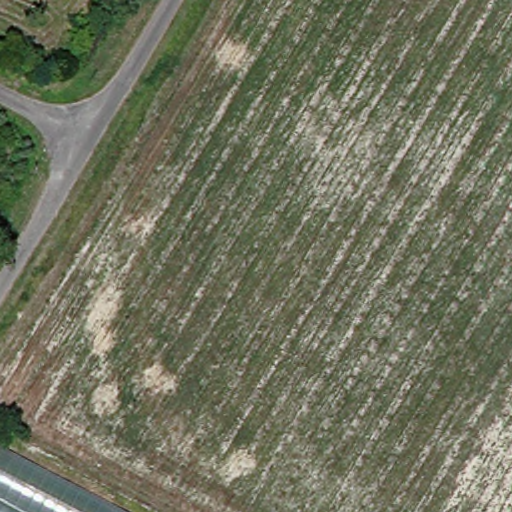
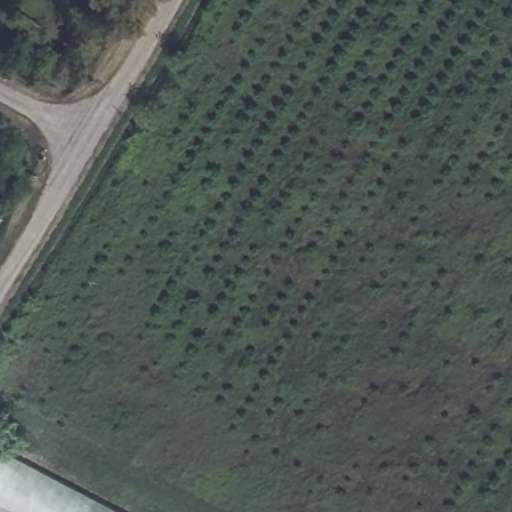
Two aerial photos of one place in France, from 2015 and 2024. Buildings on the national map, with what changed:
unchanged [(110,512),(0,512),(0,454),(110,512)]

